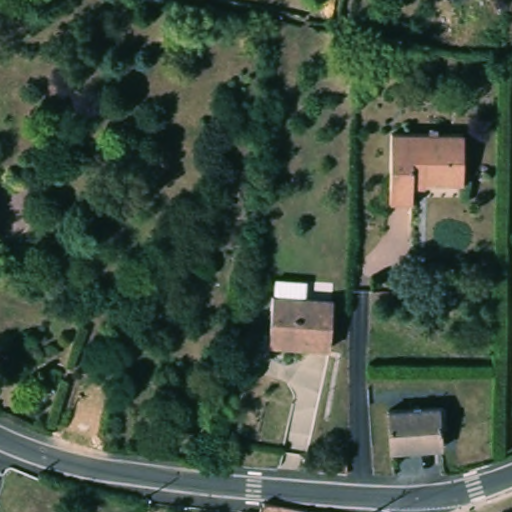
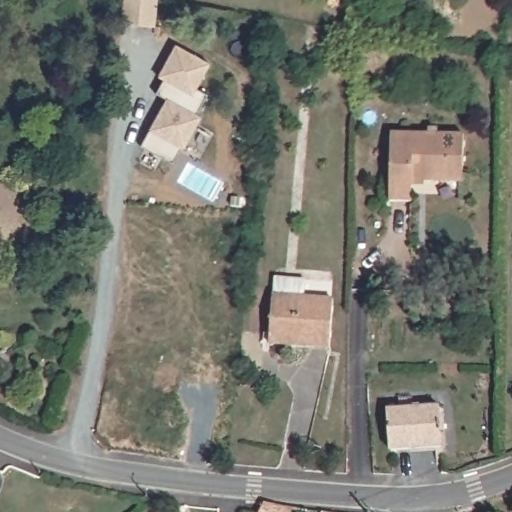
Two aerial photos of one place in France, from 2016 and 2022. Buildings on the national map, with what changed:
new [(122,0),(156,0),(154,24),(120,20),(122,0)]
new [(167,97),(157,91),(165,77),(160,74),(179,44),(212,64),(197,88),(209,95),(197,114),(201,116),(182,148),(180,147),(171,162),(140,143),(167,97)]
unchanged [(464,181),(415,180),(415,200),(392,200),(394,132),(465,134),(464,181)]
unchanged [(273,335),(277,297),(336,302),(332,350),(296,347),(272,345),(273,335)]
unchanged [(392,451),(387,411),(412,409),(412,406),(418,406),(419,408),(436,406),(441,446),(392,451)]
unchanged [(268,498),(289,502),(288,512),(261,512),(263,507),(268,498)]
new [(391,510),(390,512),(358,512),(358,511),(391,510)]
unchanged [(345,511),(344,512),(322,512),(322,511),(345,511)]

